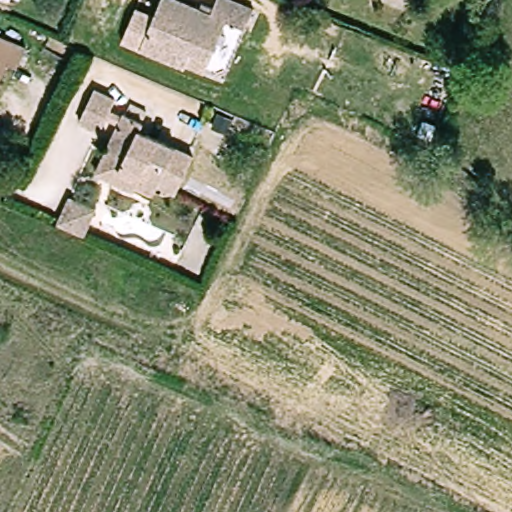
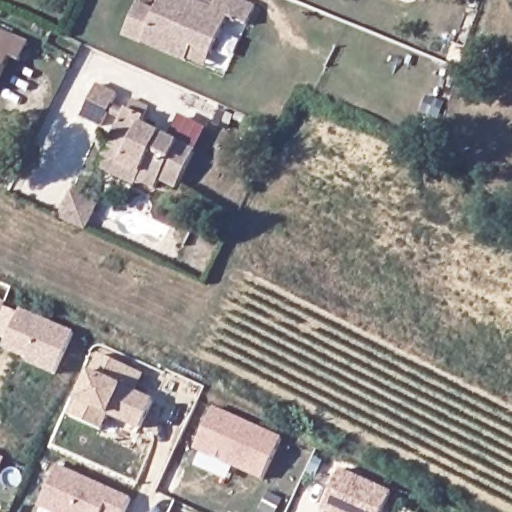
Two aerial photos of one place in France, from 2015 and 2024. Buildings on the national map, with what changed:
unchanged [(192,65),(127,39),(141,7),(158,14),(164,0),(193,0),(214,9),(217,0),(240,0),(260,8),(252,28),(229,20),(213,55),(207,72),(192,65)]
unchanged [(29,44),(18,66),(10,63),(0,86),(0,32),(29,44)]
unchanged [(114,97),(100,125),(79,117),(92,88),(114,97)]
unchanged [(101,170),(112,146),(128,111),(148,119),(145,128),(197,152),(180,189),(164,181),(159,190),(140,182),(139,186),(101,170)]
unchanged [(64,192),(89,203),(78,229),(78,228),(53,217),(64,192)]
new [(9,297),(7,302),(0,317),(0,293),(9,297)]
new [(7,302),(21,308),(23,305),(76,328),(56,373),(28,361),(29,357),(5,346),(8,339),(0,336),(0,317),(7,302)]
new [(144,375),(137,392),(154,401),(139,432),(110,417),(104,431),(70,416),(76,402),(90,370),(98,355),(144,375)]
new [(282,438),(262,481),(193,450),(213,407),(282,438)]
new [(4,456),(0,464),(0,455),(4,456)]
new [(125,512),(47,512),(39,508),(59,465),(132,498),(125,512)]
new [(384,512),(326,512),(322,510),(339,467),(393,492),(384,512)]

